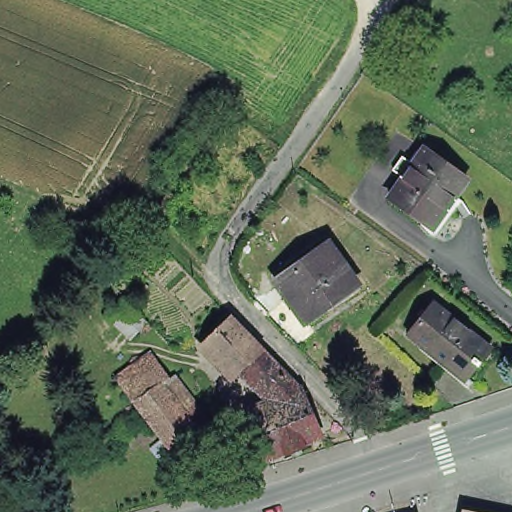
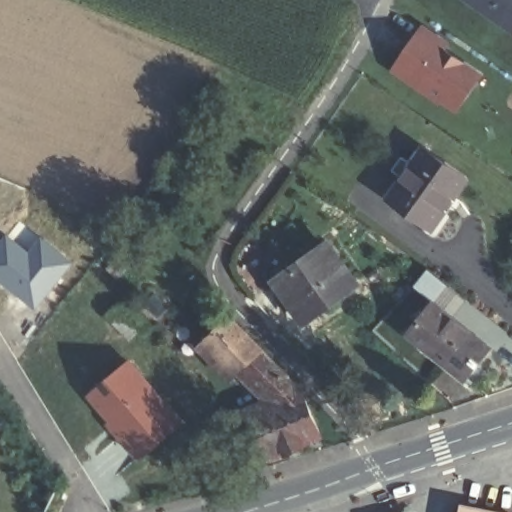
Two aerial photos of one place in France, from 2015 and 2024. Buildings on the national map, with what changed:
new [(471,0),(512,0),(512,28),(471,0)]
new [(415,41),(438,58),(445,49),(481,75),(460,106),(430,87),(426,94),(395,71),(415,41)]
unchanged [(446,223),(443,225),(435,227),(421,217),(425,212),(392,190),(406,170),(396,164),(405,151),(414,158),(425,143),(470,175),(460,190),(465,194),(446,223)]
unchanged [(168,212),(159,204),(168,192),(178,200),(168,212)]
new [(28,251),(41,237),(74,261),(32,311),(0,285),(0,241),(5,234),(28,251)]
unchanged [(327,241),(355,281),(305,316),(277,276),(327,241)]
unchanged [(146,323),(133,337),(110,316),(123,301),(146,323)]
unchanged [(433,351),(430,354),(407,335),(434,302),(490,349),(480,359),(483,363),(479,367),(472,362),(460,374),(433,351)]
unchanged [(325,434),(309,440),(310,442),(291,450),(290,448),(273,456),(251,406),(270,398),(256,384),(242,371),(211,340),(235,317),(265,348),(279,361),(307,390),(325,434)]
unchanged [(116,375),(143,348),(152,358),(155,355),(166,366),(160,372),(136,395),(116,375)]
unchanged [(187,400),(196,392),(215,410),(183,441),(136,395),(160,372),(187,400)]
unchanged [(466,508),(484,512),(465,512),(466,508)]

